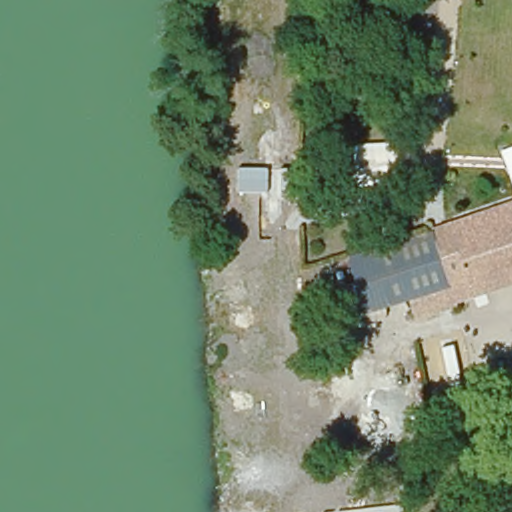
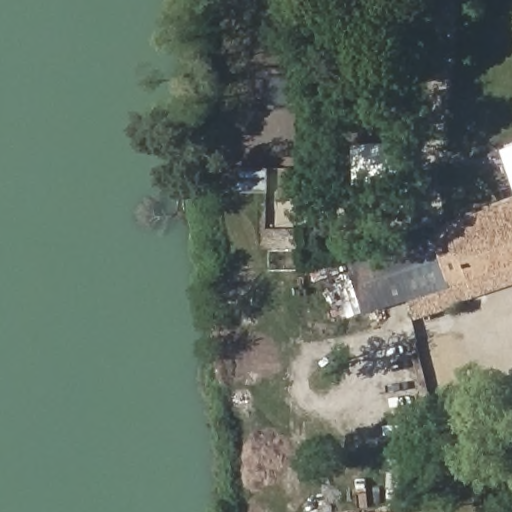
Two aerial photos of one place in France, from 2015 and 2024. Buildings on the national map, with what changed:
unchanged [(353,190),(352,144),(394,141),(397,188),(353,190)]
unchanged [(512,146),(512,191),(500,151),(512,146)]
unchanged [(450,278),(433,226),(452,220),(451,217),(512,198),(512,278),(455,295),(450,278)]
unchanged [(450,278),(423,286),(411,290),(413,299),(362,314),(346,256),(433,226),(450,278)]
unchanged [(418,316),(411,290),(423,286),(450,278),(455,295),(457,303),(436,310),(418,316)]

